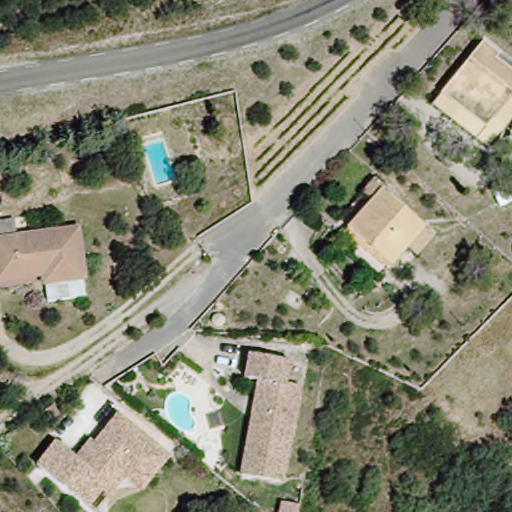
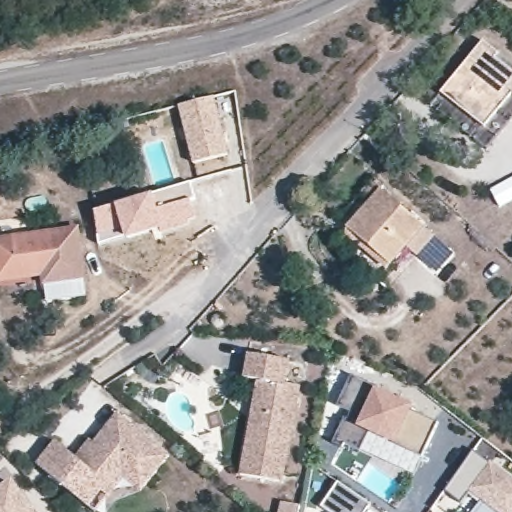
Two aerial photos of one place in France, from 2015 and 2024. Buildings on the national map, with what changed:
unchanged [(485,36),(512,60),(512,96),(507,93),(468,57),(485,36)]
unchanged [(507,93),(479,128),(440,90),(468,57),(507,93)]
new [(212,96),(228,154),(192,164),(176,105),(212,96)]
new [(151,192),(190,182),(193,197),(190,199),(196,219),(160,234),(159,231),(123,240),(122,237),(98,244),(92,211),(113,204),(151,192)]
unchanged [(413,230),(380,268),(338,232),(371,194),(413,230)]
unchanged [(46,301),(46,277),(0,285),(0,275),(0,235),(78,221),(85,272),(88,292),(46,301)]
unchanged [(240,375),(243,358),(281,370),(280,386),(293,392),(271,483),(232,476),(241,436),(250,397),(254,379),(240,375)]
new [(380,383),(377,388),(413,404),(411,408),(436,422),(422,454),(396,440),(394,445),(367,432),(361,452),(333,441),(346,410),(335,405),(350,372),(380,383)]
unchanged [(165,458),(144,487),(122,470),(90,507),(38,467),(56,443),(80,463),(116,420),(165,458)]
new [(512,512),(496,512),(468,492),(460,501),(444,489),(475,447),(512,476),(512,512)]
new [(14,476),(35,512),(0,512),(0,485),(14,476)]
new [(373,502),(367,512),(333,512),(321,505),(340,479),(373,502)]
unchanged [(300,506),(299,512),(278,512),(279,503),(300,506)]

